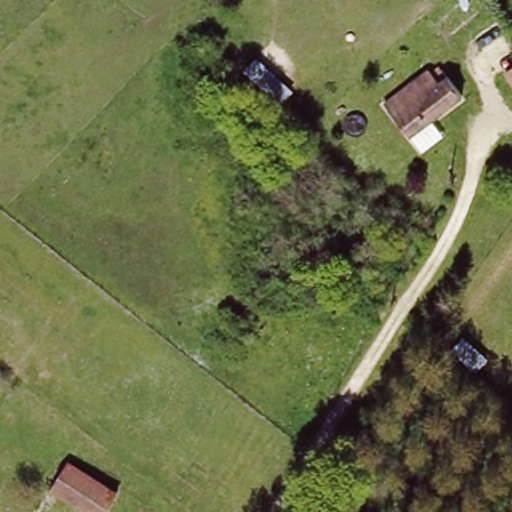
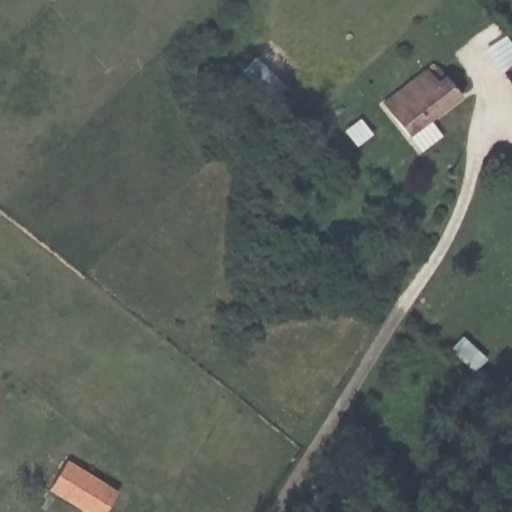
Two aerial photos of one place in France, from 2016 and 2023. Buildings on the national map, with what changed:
unchanged [(512,47),(512,50),(510,48),(512,47)]
unchanged [(291,87),(280,100),(242,74),(256,57),(291,87)]
unchanged [(428,61),(435,67),(445,61),(446,64),(465,89),(411,130),(386,95),(428,61)]
unchanged [(82,468),(117,492),(105,512),(94,512),(52,483),(68,459),(82,468)]

